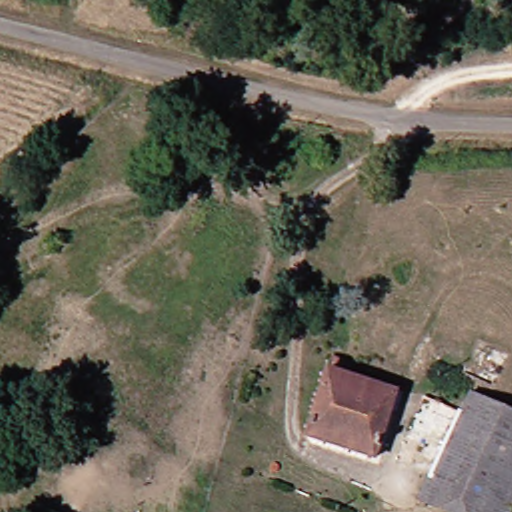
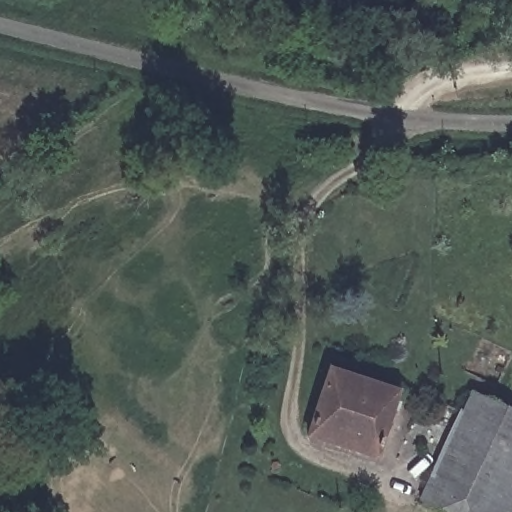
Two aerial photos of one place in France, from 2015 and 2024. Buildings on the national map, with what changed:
unchanged [(404,390),(382,455),(315,432),(335,367),(404,390)]
unchanged [(433,480),(401,463),(441,376),(474,391),(433,480)]
unchanged [(462,512),(426,495),(433,480),(474,391),(512,407),(512,475),(497,512),(462,512)]
unchanged [(512,512),(497,512),(512,475),(512,512)]

